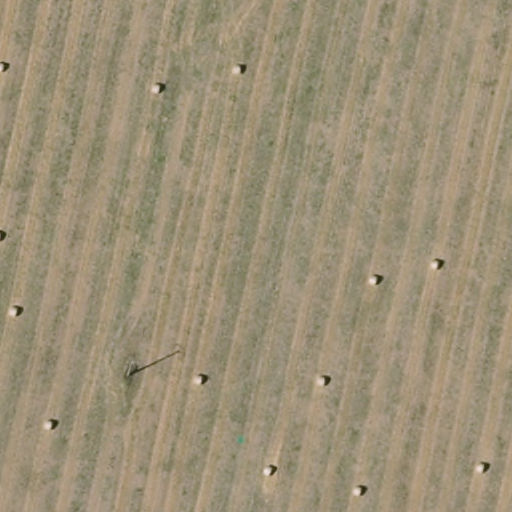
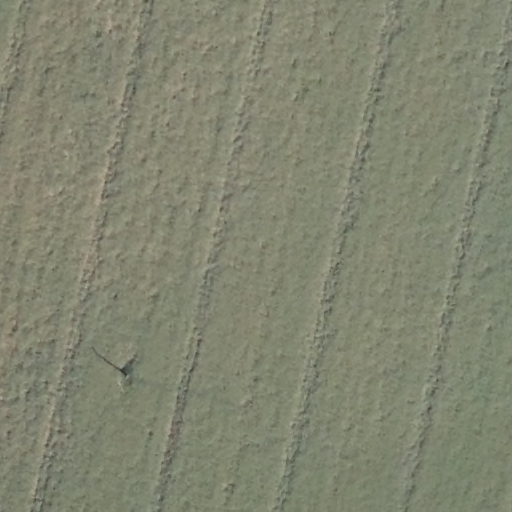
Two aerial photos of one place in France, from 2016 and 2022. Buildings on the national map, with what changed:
[]

